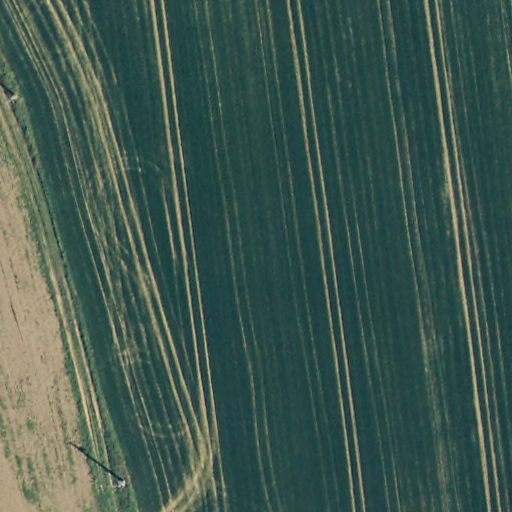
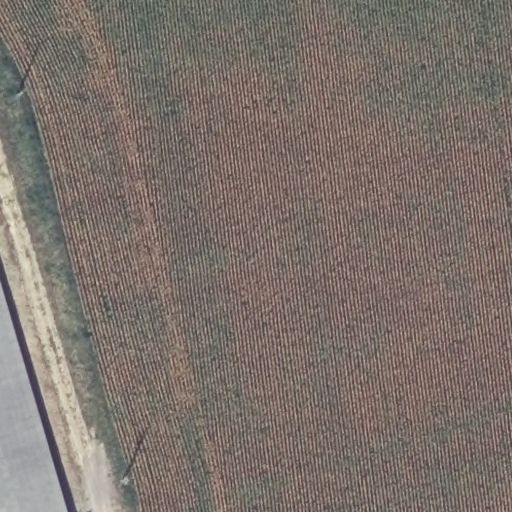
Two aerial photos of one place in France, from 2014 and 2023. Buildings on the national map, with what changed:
new [(66,512),(0,512),(0,287),(66,512)]

